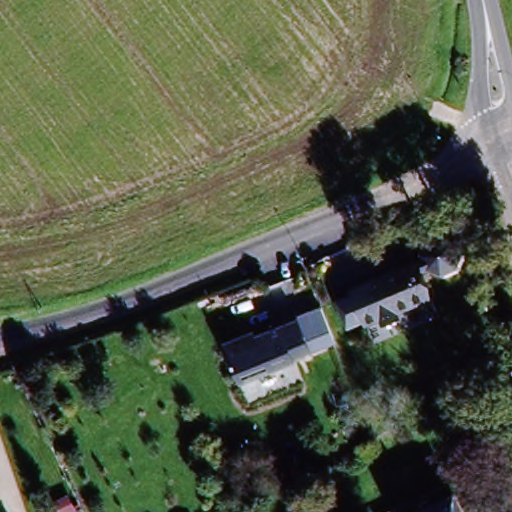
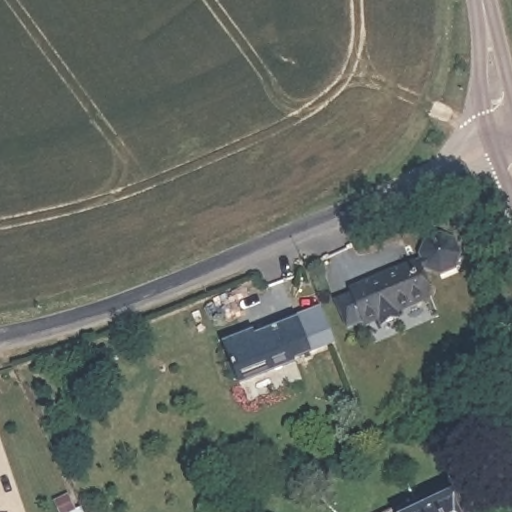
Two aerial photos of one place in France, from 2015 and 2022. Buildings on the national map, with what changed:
unchanged [(416,249),(432,241),(451,249),(457,262),(452,279),(437,286),(418,280),(412,268),(416,249)]
unchanged [(344,296),(366,286),(364,282),(409,262),(412,268),(418,280),(425,296),(412,303),(414,308),(399,317),(395,309),(381,316),(359,327),(344,296)]
unchanged [(336,342),(242,388),(219,342),(239,332),(243,340),(323,306),(336,342)]
unchanged [(457,512),(439,512),(453,505),(457,512)]

